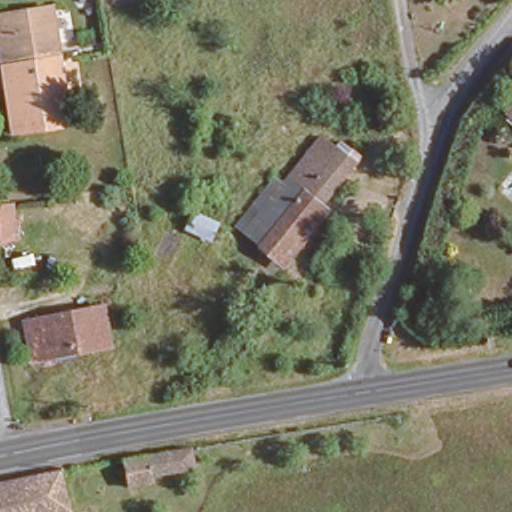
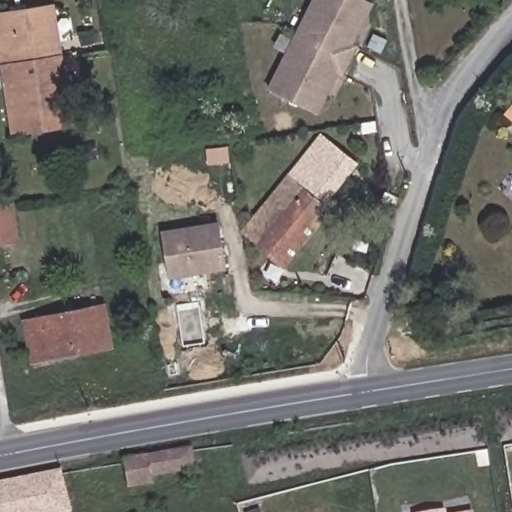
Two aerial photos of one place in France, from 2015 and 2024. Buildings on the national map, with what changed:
unchanged [(6,61),(2,29),(0,30),(0,7),(47,0),(51,0),(60,54),(62,71),(70,126),(15,132),(4,133),(0,101),(0,81),(9,80),(6,61)]
new [(354,44),(358,46),(342,77),(339,75),(318,115),(266,89),(311,0),(368,0),(375,3),(354,44)]
unchanged [(96,21),(99,34),(89,36),(86,23),(96,21)]
unchanged [(511,112),(512,111),(512,113),(511,112)]
unchanged [(278,250),(261,236),(246,223),(249,220),(240,213),(257,193),(280,166),(283,162),(291,167),(305,151),(323,128),(336,138),(357,154),(322,195),(329,202),(286,256),(278,250)]
unchanged [(0,242),(0,204),(12,202),(19,238),(0,242)]
new [(169,279),(160,230),(219,221),(227,270),(169,279)]
unchanged [(114,340),(52,351),(37,354),(35,342),(30,312),(107,298),(114,340)]
unchanged [(194,455),(153,463),(153,470),(135,475),(135,480),(129,482),(129,478),(127,478),(125,448),(193,437),(194,455)]
unchanged [(52,512),(0,512),(0,478),(63,463),(74,506),(52,512)]
new [(446,512),(427,512),(445,509),(446,512)]
new [(473,512),(466,512),(473,511),(473,512)]

